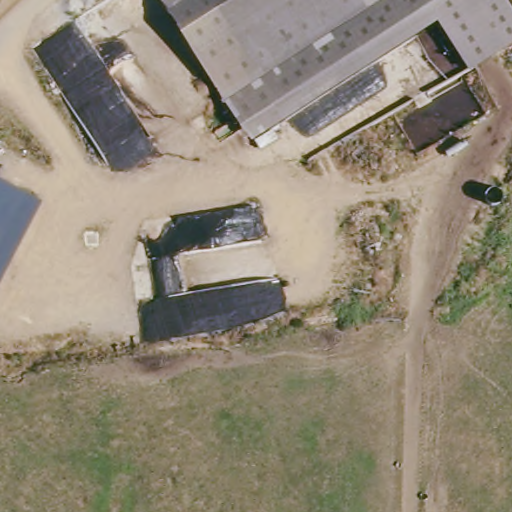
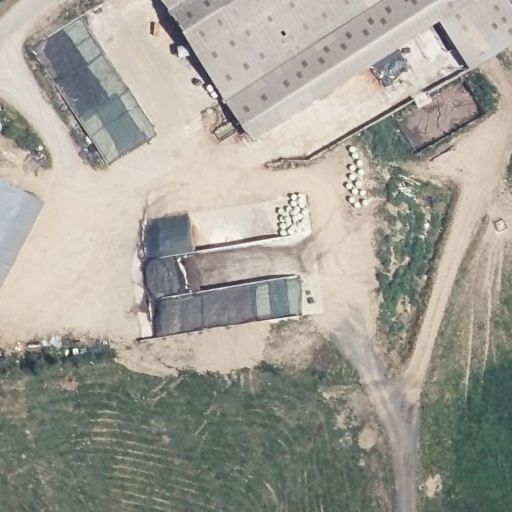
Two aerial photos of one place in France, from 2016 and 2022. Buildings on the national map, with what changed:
unchanged [(177,31),(158,0),(222,0),(214,6),(177,31)]
unchanged [(177,31),(214,6),(222,0),(420,0),(239,121),(177,31)]
unchanged [(423,0),(435,21),(253,142),(239,121),(420,0),(423,0)]
unchanged [(491,59),(468,69),(435,21),(423,0),(509,0),(512,6),(512,44),(491,59)]
unchanged [(0,290),(0,184),(43,206),(0,290)]

